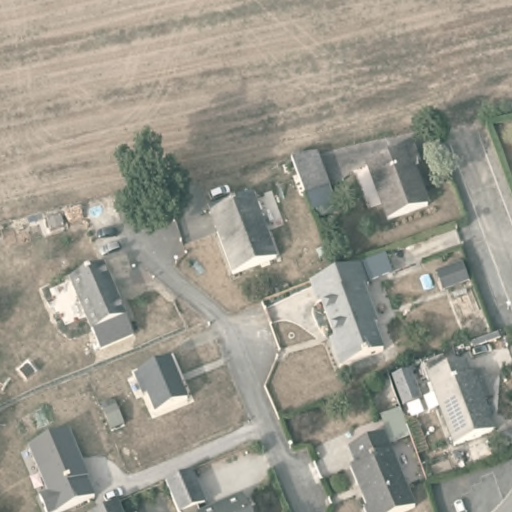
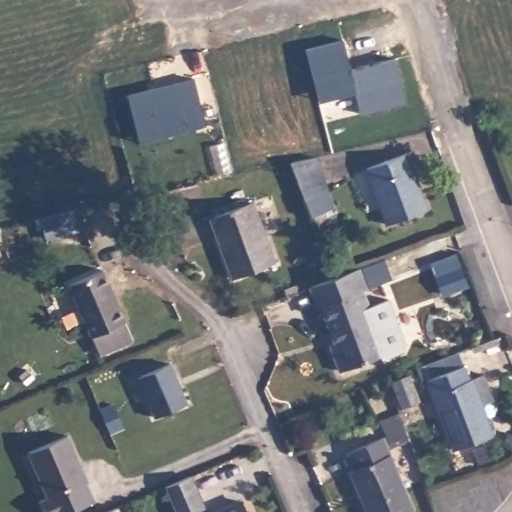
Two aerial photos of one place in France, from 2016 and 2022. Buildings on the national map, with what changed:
new [(340,39),(349,68),(393,57),(406,103),(360,114),(354,92),(317,101),(304,48),(340,39)]
new [(192,76),(205,124),(137,142),(126,94),(192,76)]
unchanged [(385,220),(364,163),(408,147),(415,164),(410,166),(425,205),(385,220)]
unchanged [(328,187),(306,196),(292,156),(315,151),(328,187)]
unchanged [(208,215),(251,200),(274,259),(231,275),(208,215)]
unchanged [(367,290),(363,294),(376,327),(373,330),(381,354),(339,369),(332,349),(335,340),(321,305),(317,306),(310,286),(335,275),(360,267),(367,290)]
unchanged [(98,354),(73,289),(72,285),(105,272),(110,282),(133,339),(98,354)]
unchanged [(187,397),(155,412),(142,382),(139,371),(169,358),(187,397)]
unchanged [(423,378),(459,364),(464,378),(467,378),(489,435),(451,450),(423,378)]
unchanged [(365,509),(350,471),(355,470),(348,452),(383,437),(414,511),(412,512),(362,512),(365,509)]
unchanged [(73,512),(40,512),(37,505),(45,501),(25,456),(64,438),(85,485),(83,485),(91,504),(73,512)]
unchanged [(201,506),(195,509),(196,512),(177,512),(165,484),(187,474),(201,506)]
unchanged [(241,501),(246,512),(217,512),(241,501)]
unchanged [(120,512),(99,512),(117,504),(120,512)]

